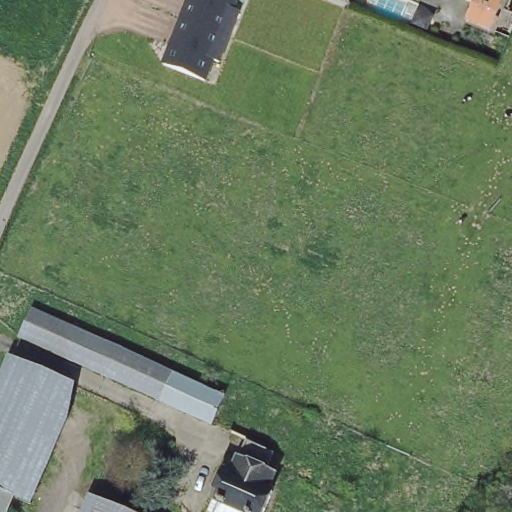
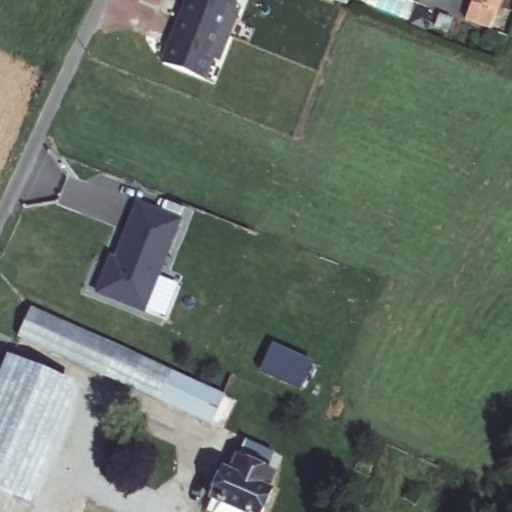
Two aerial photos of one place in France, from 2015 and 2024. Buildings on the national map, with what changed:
unchanged [(240,10),(222,60),(215,59),(210,80),(160,61),(184,0),(237,0),(235,8),(240,10)]
unchanged [(307,0),(350,0),(345,14),(307,0)]
unchanged [(475,0),(505,0),(492,31),(465,21),(475,0)]
new [(180,223),(140,313),(95,293),(105,270),(109,272),(139,205),(180,223)]
new [(115,259),(109,272),(105,270),(110,257),(115,259)]
unchanged [(20,341),(34,312),(195,385),(183,415),(20,341)]
new [(311,360),(299,389),(257,371),(270,342),(311,360)]
unchanged [(13,354),(72,378),(22,495),(18,493),(0,486),(0,384),(13,354)]
unchanged [(184,415),(183,415),(195,385),(225,399),(212,427),(184,415)]
unchanged [(265,512),(238,512),(211,499),(225,471),(232,474),(239,458),(247,442),(275,454),(267,471),(275,475),(268,491),(273,493),(265,512)]
unchanged [(18,493),(10,512),(0,512),(0,486),(18,493)]
unchanged [(91,499),(120,512),(86,512),(91,499)]

